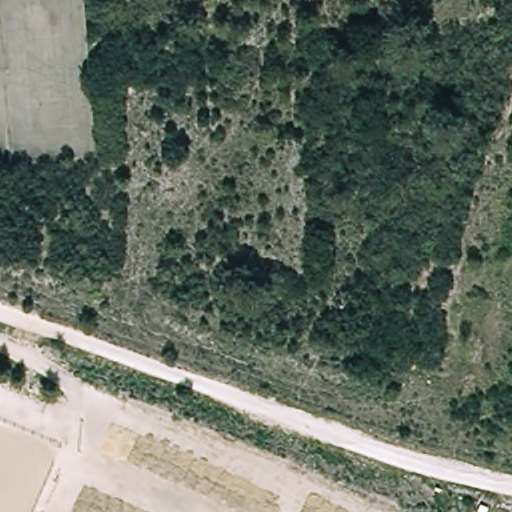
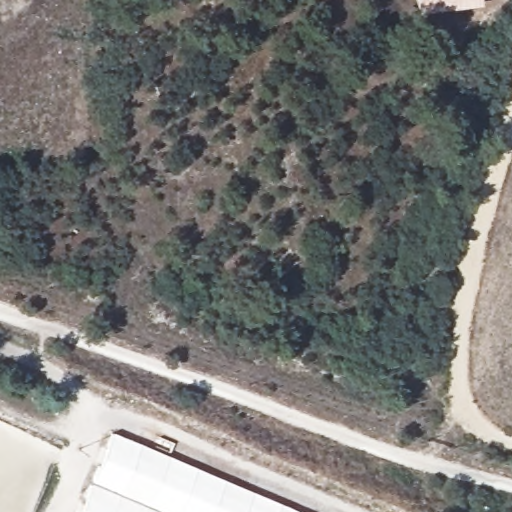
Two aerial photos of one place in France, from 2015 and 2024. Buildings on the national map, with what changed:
new [(425,14),(424,8),(418,9),(417,0),(481,0),(481,5),(425,14)]
new [(115,427),(308,512),(175,512),(92,476),(115,427)]
new [(118,497),(111,512),(79,512),(91,485),(118,497)]
new [(111,512),(118,497),(153,512),(111,512)]

